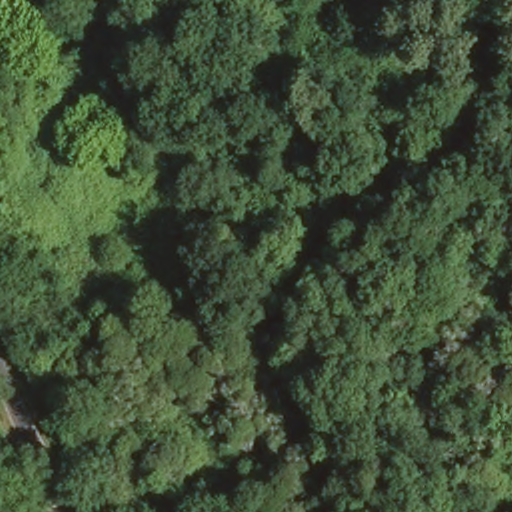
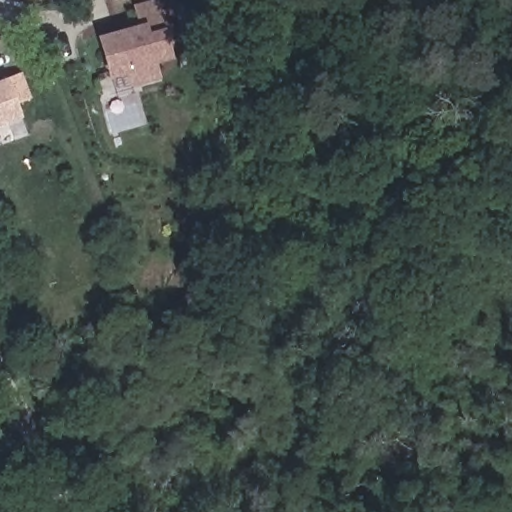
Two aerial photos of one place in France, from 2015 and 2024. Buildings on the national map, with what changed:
new [(147,29),(141,9),(157,5),(173,57),(156,62),(160,77),(136,84),(132,72),(116,77),(105,41),(147,29)]
new [(196,5),(204,44),(189,47),(181,7),(196,5)]
new [(32,99),(19,104),(23,116),(0,125),(0,82),(22,73),(32,99)]

